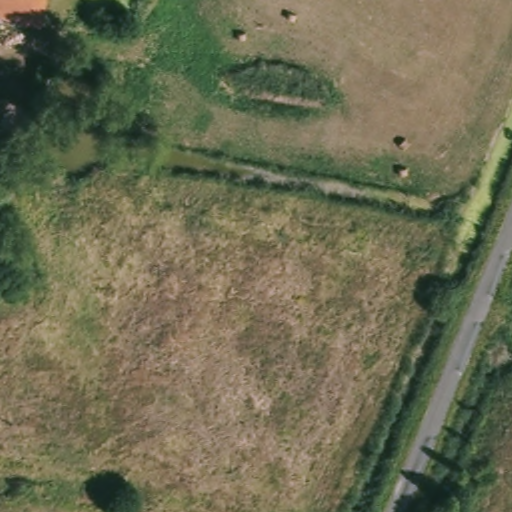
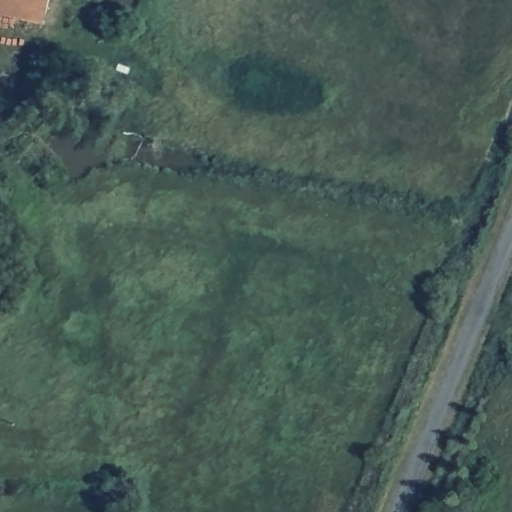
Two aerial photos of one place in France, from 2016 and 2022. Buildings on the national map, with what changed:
unchanged [(44,23),(0,16),(0,0),(48,0),(44,23)]

